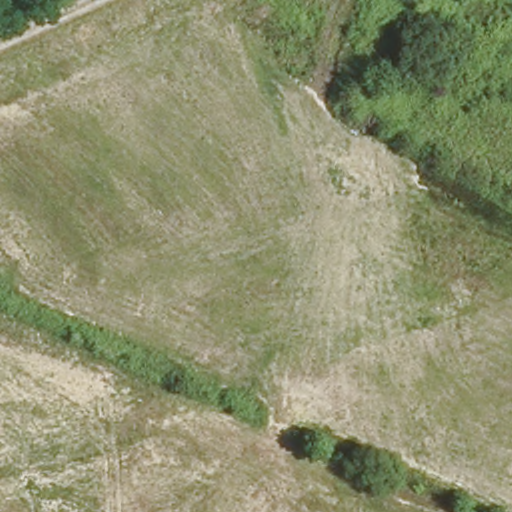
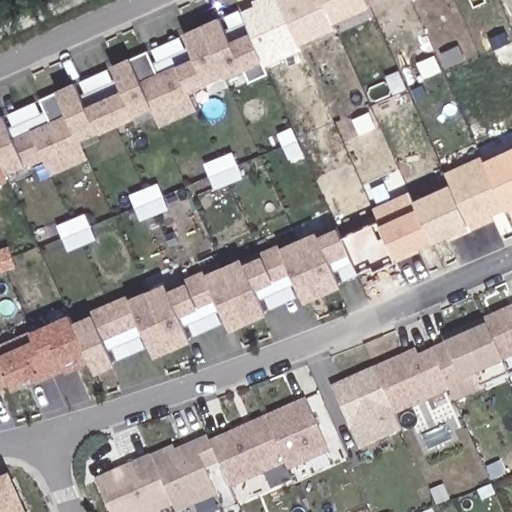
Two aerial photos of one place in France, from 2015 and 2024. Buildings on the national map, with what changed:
new [(333,20),(336,25),(300,41),(302,48),(264,64),(263,60),(249,30),(241,11),(254,5),(252,0),(368,0),(369,4),(333,20)]
new [(8,126),(14,124),(8,112),(35,100),(41,112),(45,110),(40,99),(56,91),(55,88),(74,80),(80,94),(86,92),(80,80),(107,67),(113,79),(117,77),(111,63),(129,55),(131,58),(148,50),(153,62),(158,59),(153,48),(179,35),(185,47),(189,45),(183,31),(219,15),(226,29),(230,27),(224,14),(240,8),(249,30),(263,60),(268,73),(250,81),(249,80),(232,87),(230,85),(211,94),(206,82),(189,90),(197,109),(160,126),(154,113),(136,121),(134,115),(80,139),(89,157),(51,175),(44,159),(28,167),(26,164),(6,172),(9,178),(0,183),(0,113),(2,112),(8,126)]
new [(505,209),(492,214),(495,219),(447,240),(445,235),(432,239),(418,245),(420,249),(395,260),(374,269),(371,263),(356,270),(348,252),(341,235),(377,219),(374,206),(410,190),(414,197),(449,182),(445,171),(482,154),(484,158),(512,145),(512,206),(505,209)]
new [(339,268),(333,269),(341,285),(304,301),(301,293),(271,307),(266,295),(260,298),(267,312),(230,330),(227,322),(191,339),(155,356),(151,347),(115,364),(97,372),(92,361),(66,373),(64,371),(35,384),(33,380),(13,389),(11,384),(0,389),(0,344),(28,331),(69,312),(73,320),(91,312),(129,295),(164,281),(166,285),(184,278),(202,268),(205,272),(240,256),(243,260),(280,244),(315,229),(318,233),(336,224),(348,252),(358,274),(344,280),(339,268)]
new [(503,359),(509,373),(480,386),(481,388),(454,399),(450,389),(442,371),(454,364),(447,349),(443,341),(477,326),(476,321),(512,305),(512,356),(503,359)]
new [(447,349),(454,364),(442,371),(450,389),(396,412),(402,429),(359,450),(332,384),(416,347),(418,352),(443,341),(447,349)]
new [(308,398),(331,449),(290,468),(287,461),(219,492),(220,495),(183,512),(178,512),(155,461),(153,457),(175,446),(177,451),(210,436),(213,443),(308,398)]
new [(97,482),(153,457),(175,505),(161,512),(111,512),(97,482)]
new [(0,478),(9,474),(26,512),(0,512),(0,478)]
new [(486,499),(482,489),(495,484),(499,493),(486,499)]

